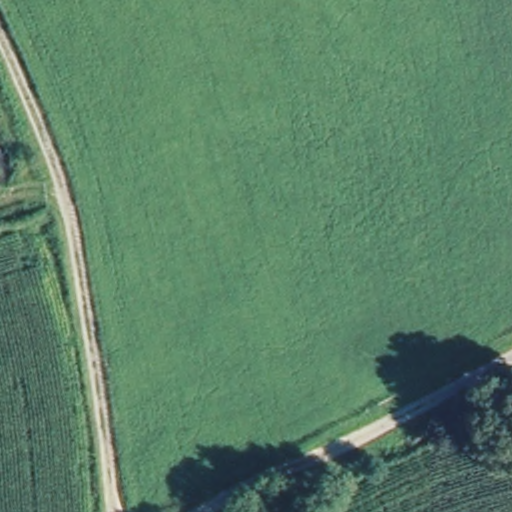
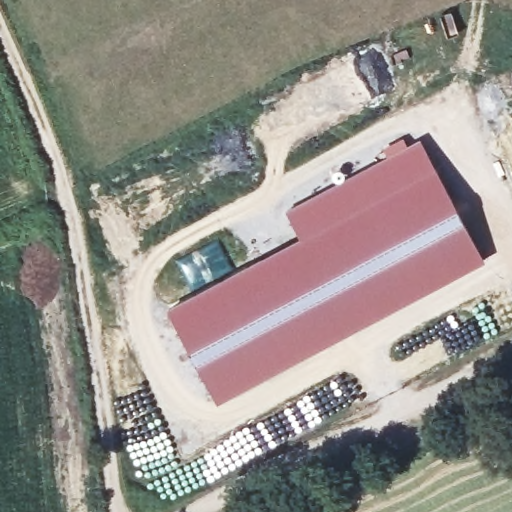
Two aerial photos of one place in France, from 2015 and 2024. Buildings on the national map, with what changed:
new [(221,276),(212,254),(214,252),(210,246),(219,242),(234,269),(298,236),(284,210),(386,156),(382,149),(404,137),(407,144),(419,137),(484,258),(262,380),(216,403),(183,343),(165,306),(221,276)]

